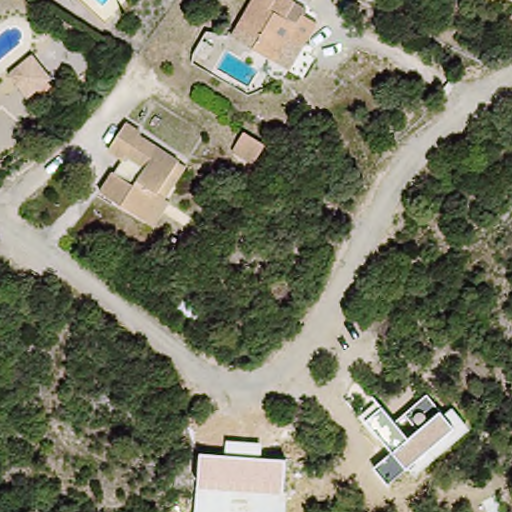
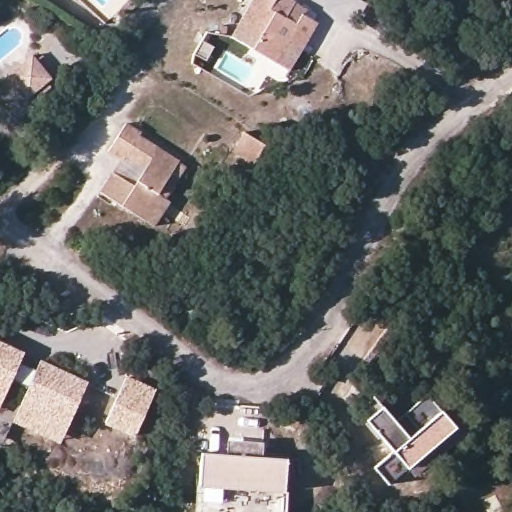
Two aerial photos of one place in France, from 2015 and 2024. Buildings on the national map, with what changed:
unchanged [(244,46),(249,34),(246,32),(261,0),(263,0),(277,7),(280,0),(295,9),(288,25),(299,31),(304,21),(321,30),(310,55),(296,46),(286,71),(263,59),(269,44),(261,40),(256,53),(244,46)]
unchanged [(33,57),(52,80),(25,103),(5,79),(33,57)]
unchanged [(152,226),(140,219),(104,197),(115,177),(135,191),(148,170),(127,157),(124,164),(108,154),(126,125),(141,134),(138,139),(180,165),(161,199),(166,201),(152,226)]
new [(27,386),(12,378),(0,402),(0,342),(24,353),(20,361),(36,370),(40,360),(88,382),(59,443),(11,422),(27,386)]
new [(123,375),(153,388),(132,433),(102,418),(123,375)]
unchanged [(409,436),(418,427),(404,413),(429,392),(444,411),(452,406),(470,428),(414,476),(408,468),(389,483),(376,468),(391,450),(360,415),(378,400),(409,436)]
unchanged [(226,454),(226,438),(263,441),(263,456),(288,458),(286,492),(199,486),(201,451),(226,454)]
new [(288,493),(286,512),(194,512),(196,485),(199,486),(286,492),(288,493)]
new [(496,495),(505,512),(488,512),(483,502),(496,495)]

